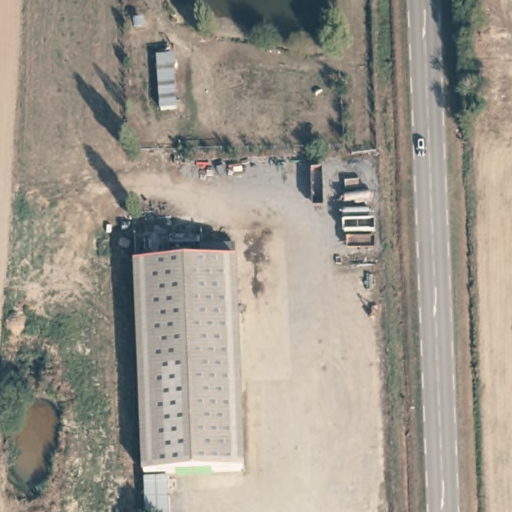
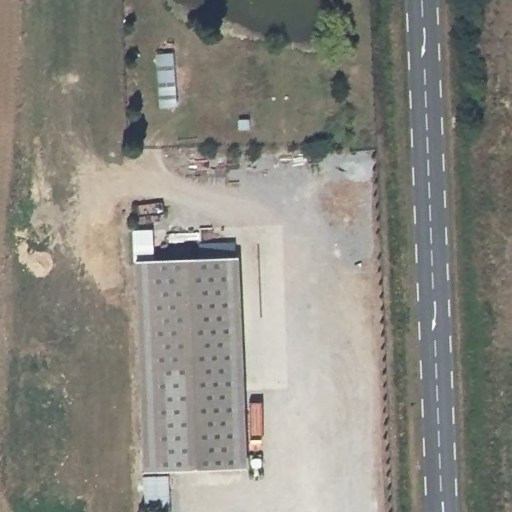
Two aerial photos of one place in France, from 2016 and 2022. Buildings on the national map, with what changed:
unchanged [(160,106),(158,59),(158,52),(174,52),(174,59),(176,106),(160,106)]
unchanged [(169,512),(143,512),(132,261),(235,257),(243,468),(168,471),(169,512)]

